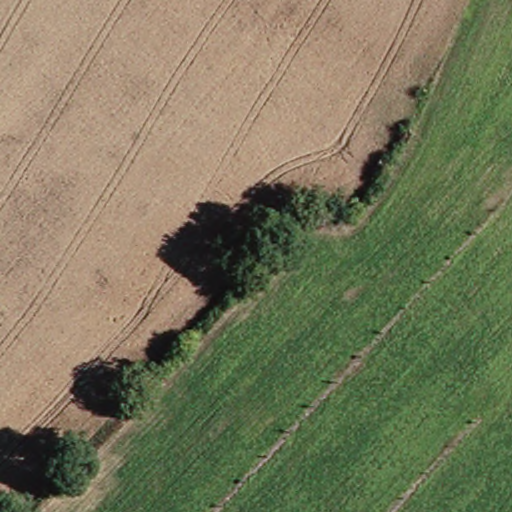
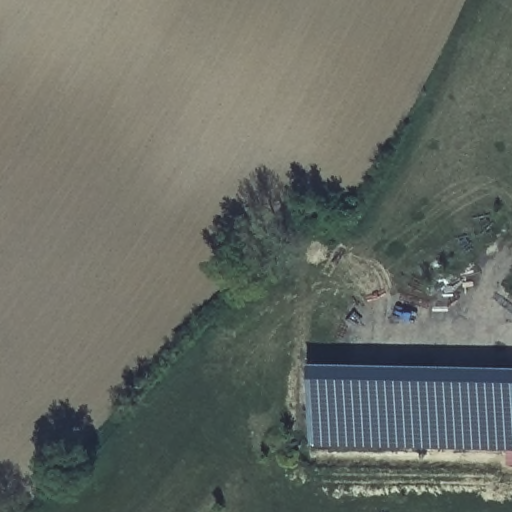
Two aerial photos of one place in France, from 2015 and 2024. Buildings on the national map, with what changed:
new [(313,448),(315,365),(512,369),(512,452),(313,448)]

